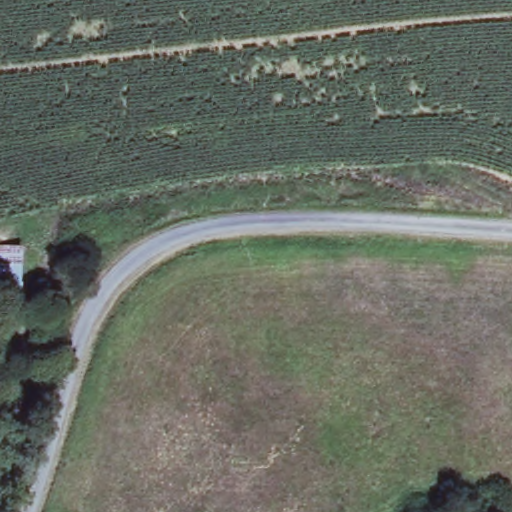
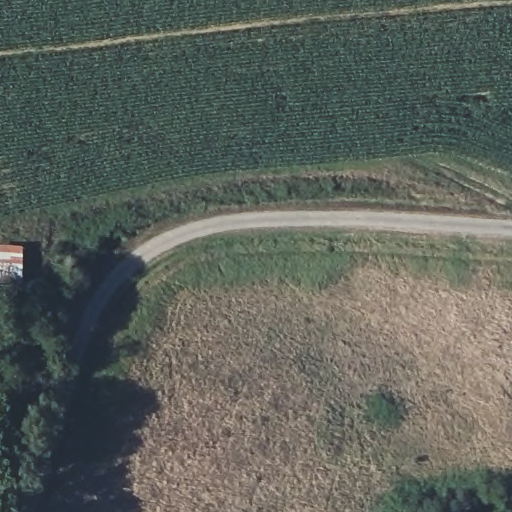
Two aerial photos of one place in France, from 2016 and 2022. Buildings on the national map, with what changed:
unchanged [(27,250),(27,318),(26,328),(0,328),(0,250),(27,250)]

